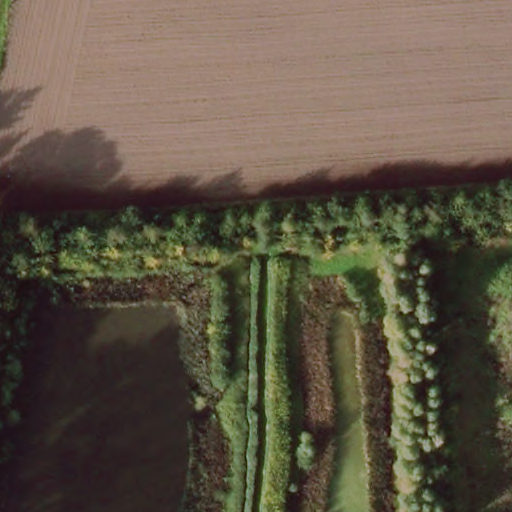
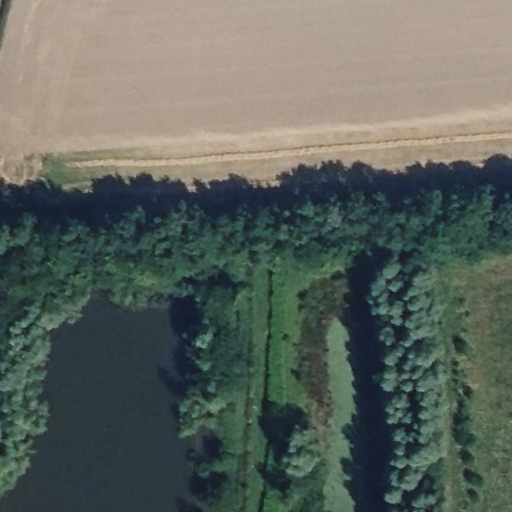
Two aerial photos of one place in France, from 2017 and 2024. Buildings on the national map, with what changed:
[]

